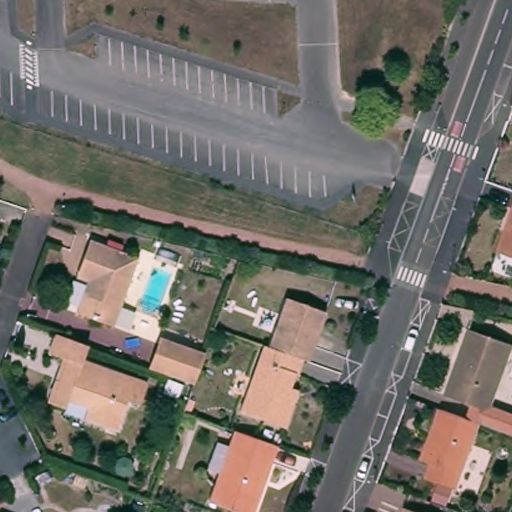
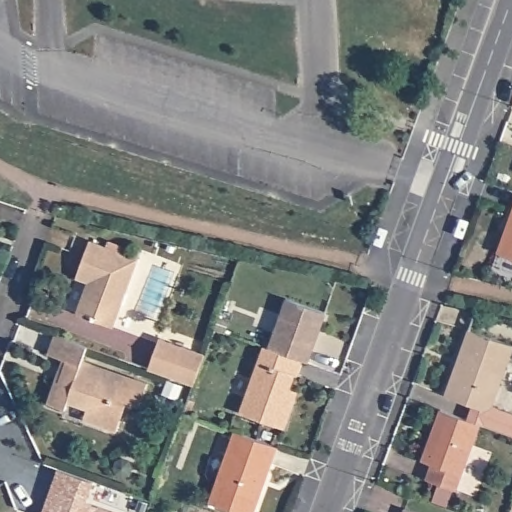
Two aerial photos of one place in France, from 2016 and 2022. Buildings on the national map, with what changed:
unchanged [(494,254),(512,203),(512,261),(494,254)]
unchanged [(136,261),(111,329),(74,316),(83,292),(71,288),(74,280),(86,244),(136,261)]
unchanged [(285,298),(323,312),(305,361),(301,360),(266,347),(285,298)]
unchanged [(476,429),(464,425),(471,408),(442,398),(466,334),(511,350),(490,408),(512,417),(512,442),(476,429)]
unchanged [(145,383),(136,407),(123,402),(111,433),(79,420),(83,409),(65,403),(63,409),(45,403),(53,380),(60,358),(46,353),(53,335),(86,346),(81,360),(145,383)]
unchanged [(157,340),(202,356),(191,385),(146,370),(157,340)]
unchanged [(293,402),(282,431),(236,414),(261,346),(266,347),(301,360),(295,377),(292,376),(287,390),(296,393),(293,402)]
unchanged [(464,425),(476,429),(452,495),(422,484),(427,467),(419,464),(436,414),(464,425)]
unchanged [(251,512),(234,512),(206,502),(232,431),(276,447),(251,512)]
new [(58,469),(95,481),(88,501),(119,512),(42,512),(58,469)]
unchanged [(405,509),(415,512),(404,512),(405,509)]

